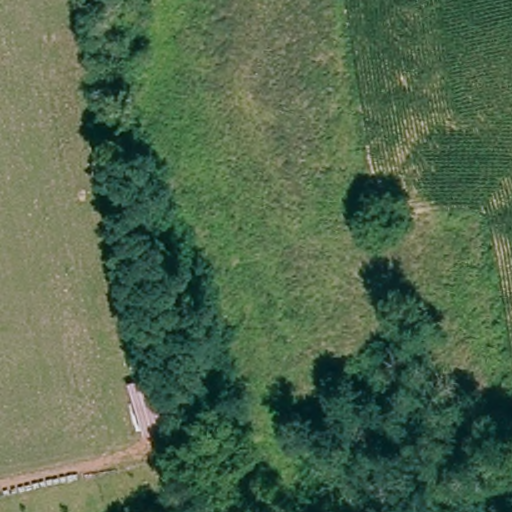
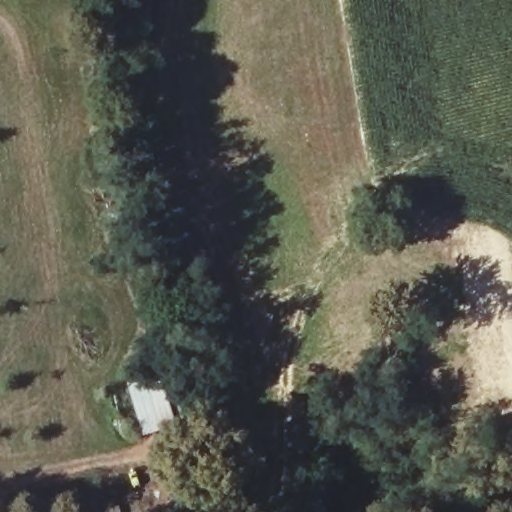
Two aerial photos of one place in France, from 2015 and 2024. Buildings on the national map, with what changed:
unchanged [(183,423),(178,425),(154,432),(139,383),(165,375),(168,374),(183,423)]

